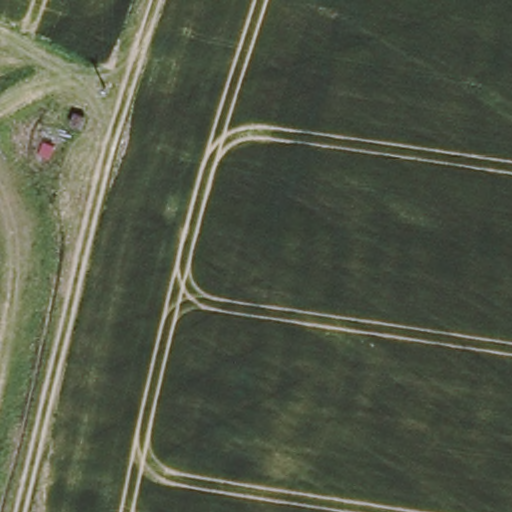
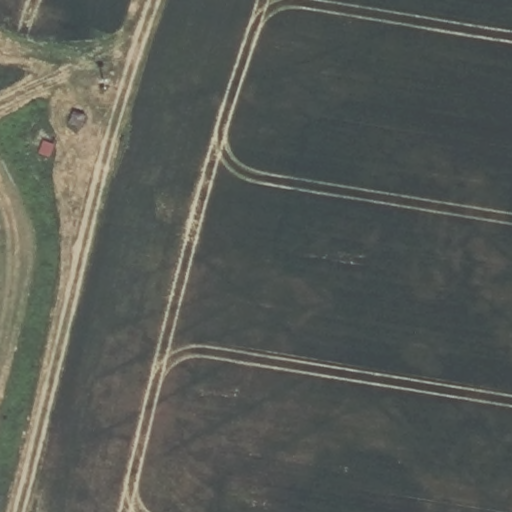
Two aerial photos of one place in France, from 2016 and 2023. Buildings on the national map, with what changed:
unchanged [(71,110),(88,115),(84,130),(67,123),(71,110)]
unchanged [(37,154),(42,137),(60,142),(57,160),(37,154)]

